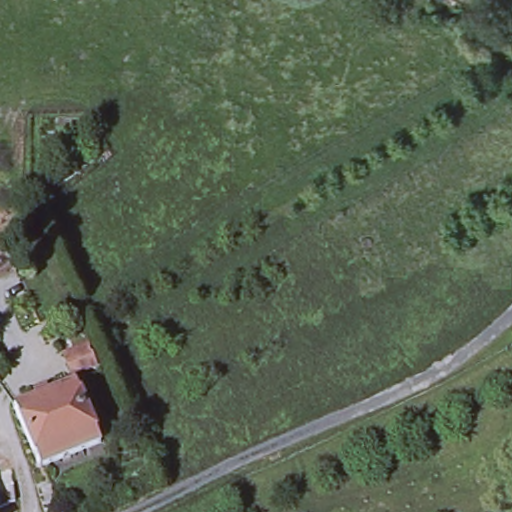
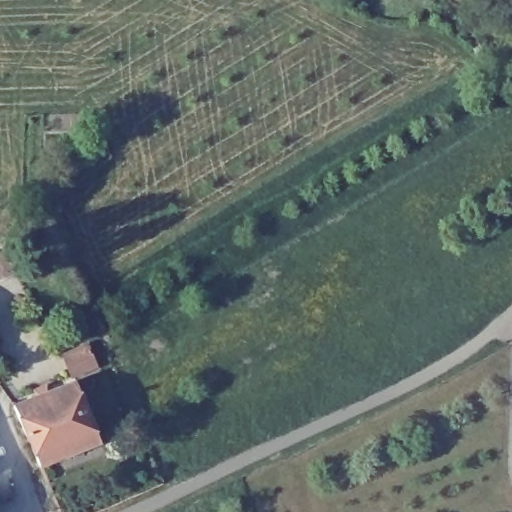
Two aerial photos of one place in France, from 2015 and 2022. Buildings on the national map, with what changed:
unchanged [(11,269),(0,275),(0,245),(11,269)]
unchanged [(11,269),(23,296),(32,316),(36,324),(0,340),(0,275),(11,269)]
unchanged [(66,388),(57,365),(88,353),(97,377),(76,385),(100,445),(40,469),(13,409),(66,388)]

